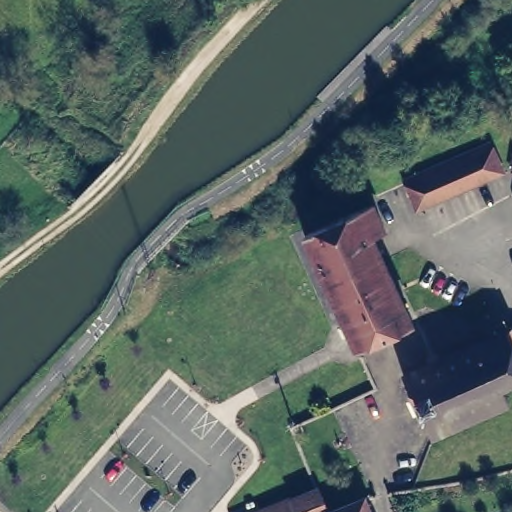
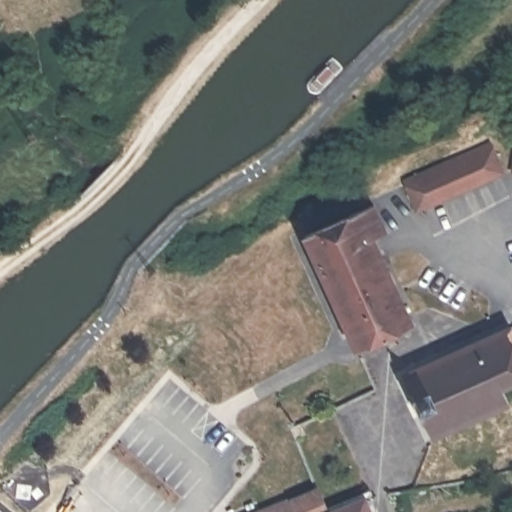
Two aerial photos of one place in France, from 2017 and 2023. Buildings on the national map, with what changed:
unchanged [(491,139),(504,169),(430,200),(427,201),(419,205),(417,203),(415,201),(415,200),(415,199),(414,198),(413,196),(412,192),(411,191),(411,189),(410,186),(410,182),(410,180),(411,177),(412,175),(413,172),(417,170),(491,139)]
unchanged [(304,236),(372,205),(384,231),(372,237),(391,280),(335,305),(304,236)]
unchanged [(355,351),(335,305),(391,280),(412,327),(355,351)]
unchanged [(512,332),(512,387),(507,390),(512,405),(512,406),(435,439),(408,377),(512,332)]
unchanged [(315,488),(326,512),(293,512),(289,500),(315,488)]
unchanged [(362,497),(369,512),(329,512),(362,497)]
unchanged [(289,500),(293,512),(261,512),(289,500)]

